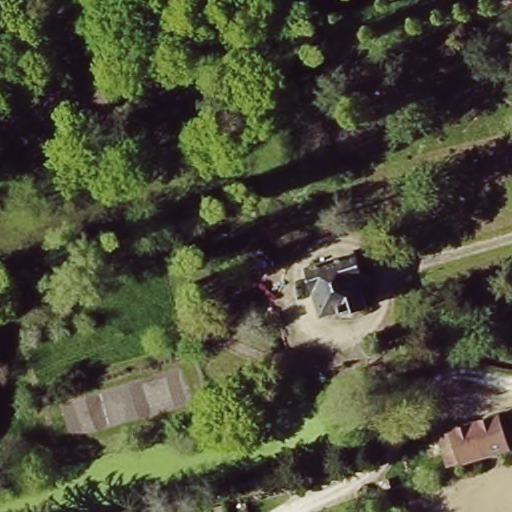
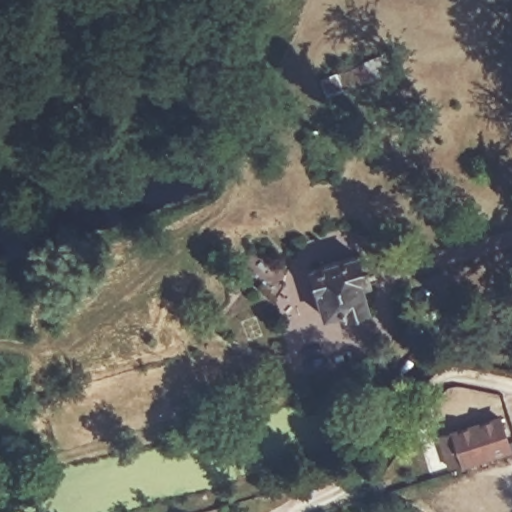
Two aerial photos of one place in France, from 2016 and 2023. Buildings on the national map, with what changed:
unchanged [(355,273),(359,285),(352,287),(357,307),(334,314),(332,310),(314,316),(300,268),(347,254),(353,274),(355,273)]
unchanged [(445,435),(504,417),(512,443),(512,448),(467,462),(455,466),(452,457),(445,435)]

